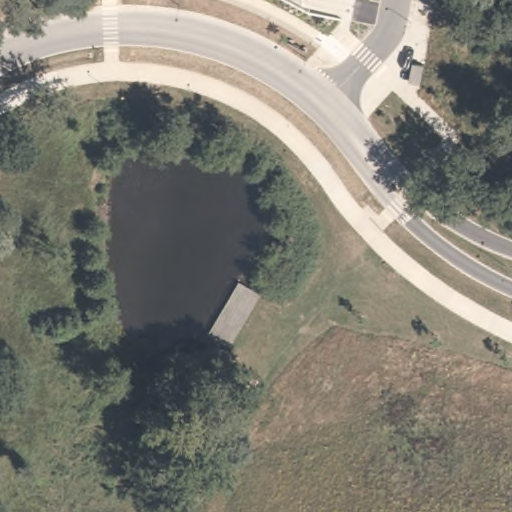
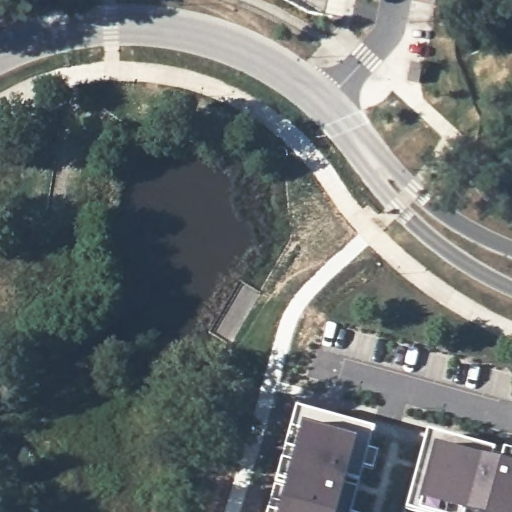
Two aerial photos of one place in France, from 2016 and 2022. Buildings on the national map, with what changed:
new [(334,424),(372,434),(351,512),(267,512),(291,421),(294,413),(334,424)]
new [(425,435),(512,459),(512,512),(404,512),(407,503),(425,435)]

